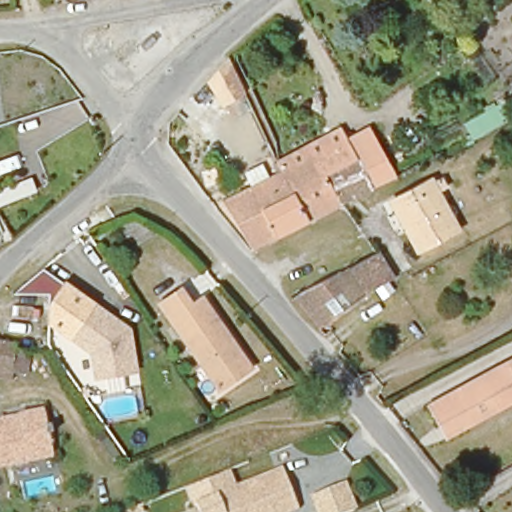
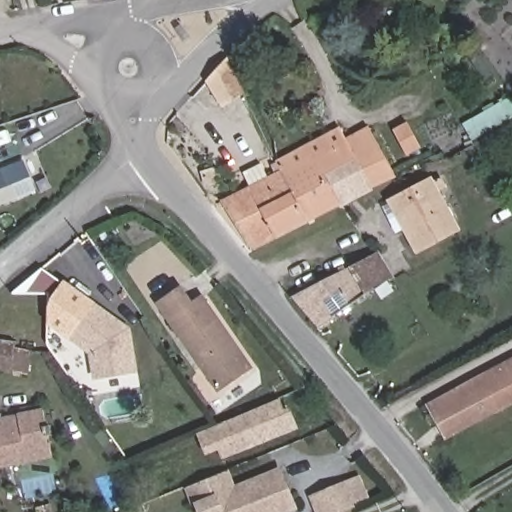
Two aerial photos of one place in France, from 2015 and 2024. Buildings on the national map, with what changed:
unchanged [(237,90),(227,102),(204,83),(222,60),(237,90)]
unchanged [(328,178),(343,205),(277,241),(263,215),(296,197),(285,175),(327,154),(316,132),(332,124),(343,145),(348,142),(358,162),(328,178)]
unchanged [(395,177),(373,189),(358,162),(348,142),(358,137),(370,130),(395,177)]
unchanged [(343,205),(328,178),(358,162),(373,189),(349,201),(343,205)]
unchanged [(263,215),(277,241),(258,252),(227,205),(256,190),(249,177),(267,168),(274,181),(285,175),(296,197),(263,215)]
unchanged [(33,183),(36,195),(0,205),(0,192),(33,183)]
unchanged [(396,214),(391,205),(406,197),(418,191),(432,184),(458,235),(434,248),(418,256),(396,214)]
unchanged [(374,249),(397,281),(317,327),(298,298),(374,249)]
unchanged [(50,321),(49,294),(15,293),(43,269),(89,302),(66,334),(50,321)]
unchanged [(184,296),(193,310),(206,301),(255,372),(222,394),(165,309),(184,296)]
unchanged [(93,375),(90,351),(66,334),(89,302),(116,321),(126,328),(133,368),(93,375)]
unchanged [(0,373),(0,343),(14,344),(18,345),(14,374),(0,373)]
unchanged [(433,408),(512,365),(512,407),(474,428),(450,441),(442,426),(433,408)]
new [(300,429),(224,460),(220,450),(206,455),(197,433),(281,398),(285,409),(291,407),(300,429)]
unchanged [(57,459),(0,472),(0,423),(49,414),(57,459)]
unchanged [(230,469),(238,489),(231,492),(219,497),(224,512),(192,512),(182,488),(230,469)]
unchanged [(231,492),(238,489),(283,470),(298,508),(288,512),(224,512),(219,497),(231,492)]
unchanged [(346,481),(357,506),(344,512),(320,512),(313,494),(346,481)]
new [(144,508),(145,512),(135,512),(144,508)]

